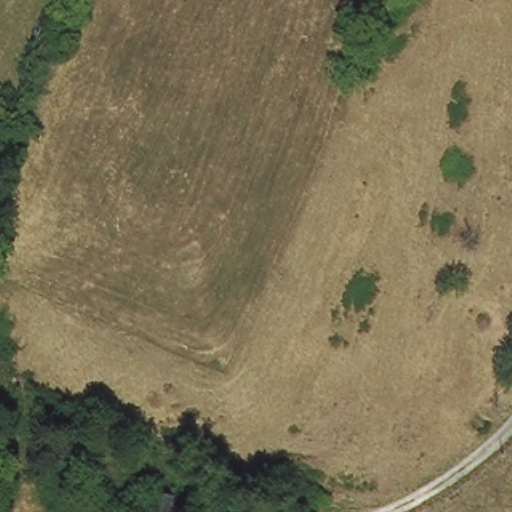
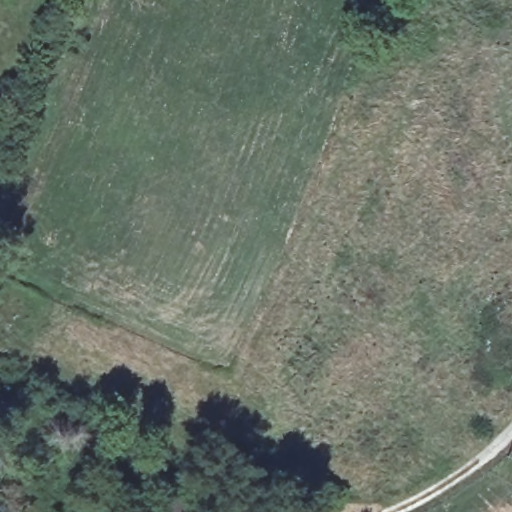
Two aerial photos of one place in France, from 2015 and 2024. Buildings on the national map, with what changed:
[]

